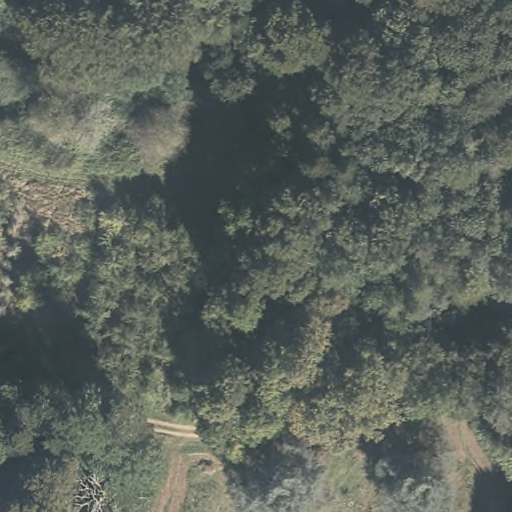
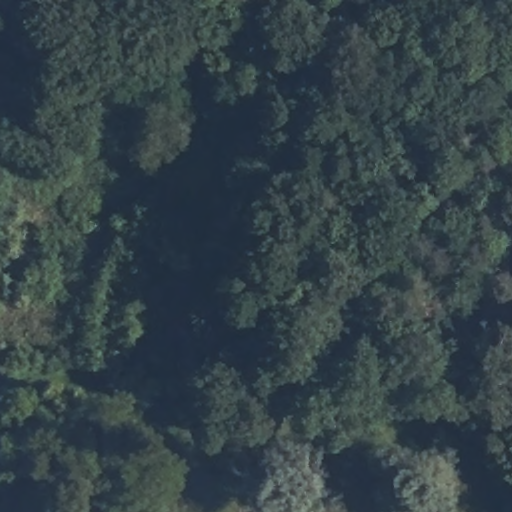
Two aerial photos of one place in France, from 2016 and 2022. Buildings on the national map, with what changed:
unchanged [(483,242),(510,242),(511,318),(483,318),(483,242)]

